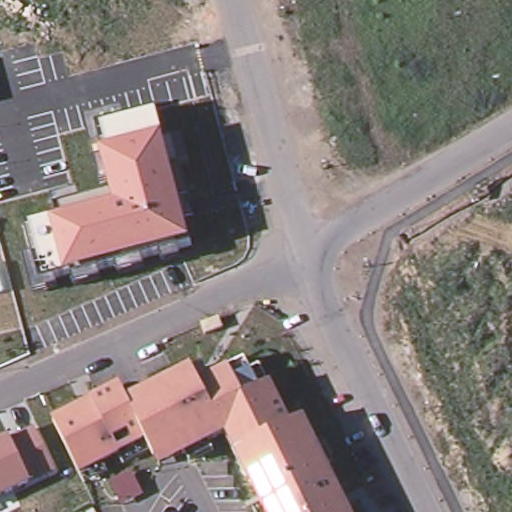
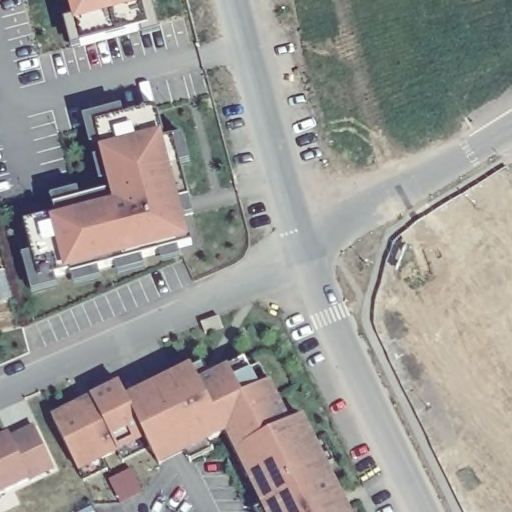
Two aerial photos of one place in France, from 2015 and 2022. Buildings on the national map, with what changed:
new [(149,30),(81,47),(75,25),(69,0),(142,0),(142,4),(149,30)]
unchanged [(190,241),(44,281),(25,227),(59,216),(56,207),(112,191),(95,125),(155,108),(190,241)]
unchanged [(225,321),(229,331),(212,337),(207,327),(225,321)]
unchanged [(229,435),(159,471),(144,440),(80,473),(53,412),(120,382),(129,400),(192,366),(200,382),(232,367),(239,380),(255,371),(263,387),(272,382),(295,426),(307,420),(350,512),(266,512),(229,435)]
unchanged [(0,498),(0,439),(12,433),(35,425),(53,470),(30,484),(0,498)]

